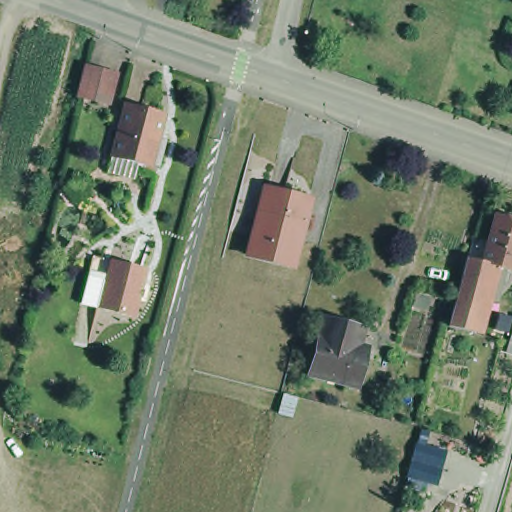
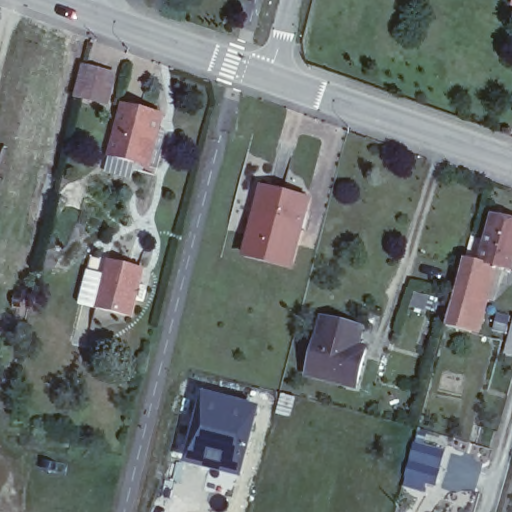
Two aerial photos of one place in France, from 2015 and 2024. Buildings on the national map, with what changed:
demolished [(349,0),(364,0),(355,29),(342,24),(349,0)]
unchanged [(117,74),(109,102),(79,95),(86,66),(117,74)]
unchanged [(154,159),(145,157),(141,156),(117,149),(107,146),(120,95),(130,97),(160,105),(154,127),(162,130),(154,159)]
unchanged [(292,257),(247,246),(257,210),(247,208),(255,175),(265,177),(310,190),(292,257)]
unchanged [(494,204),(512,209),(512,259),(512,261),(499,257),(480,252),(494,204)]
unchanged [(467,248),(480,252),(499,257),(496,268),(490,266),(474,324),(447,317),(467,248)]
unchanged [(110,260),(145,270),(133,317),(97,307),(110,260)]
unchanged [(359,378),(349,376),(310,366),(325,310),(364,320),(359,337),(369,340),(359,378)]
unchanged [(507,351),(512,333),(512,352),(507,351)]
new [(189,460),(205,397),(255,409),(238,473),(189,460)]
unchanged [(445,452),(440,467),(412,459),(415,445),(445,452)]
unchanged [(410,463),(440,471),(435,485),(407,477),(410,462),(410,463)]

